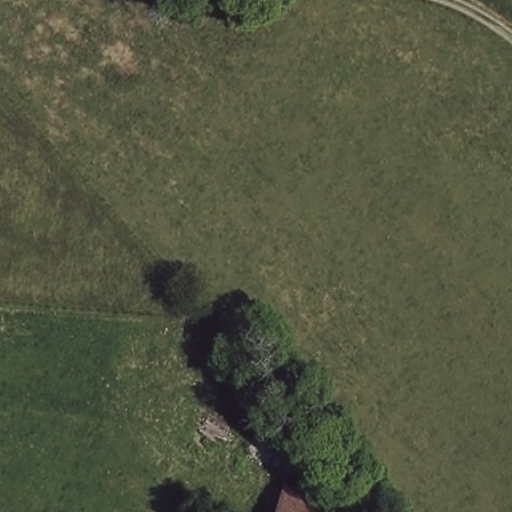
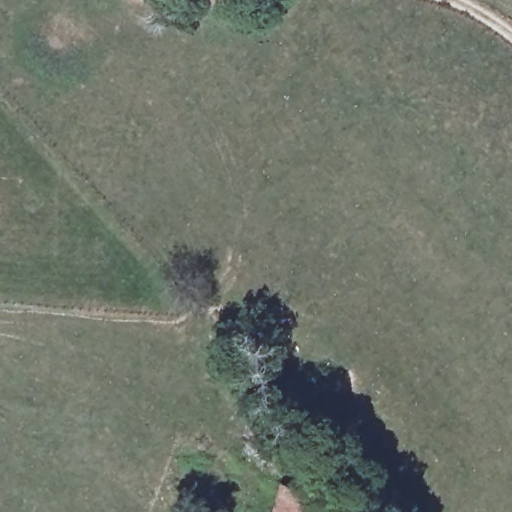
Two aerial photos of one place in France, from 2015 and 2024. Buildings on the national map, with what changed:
unchanged [(269,512),(280,483),(334,512),(269,512)]

